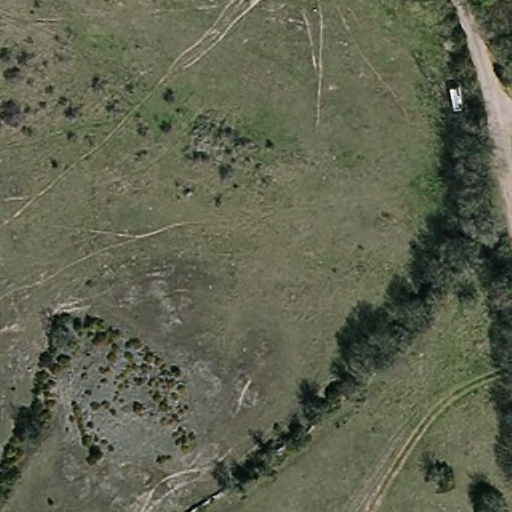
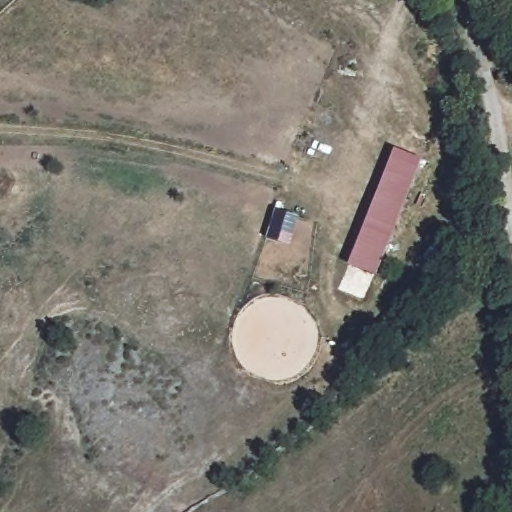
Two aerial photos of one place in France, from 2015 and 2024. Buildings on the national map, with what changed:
new [(348,264),(394,148),(422,159),(376,276),(348,264)]

